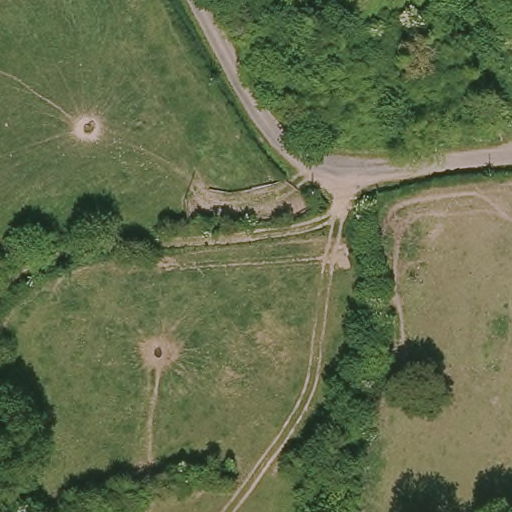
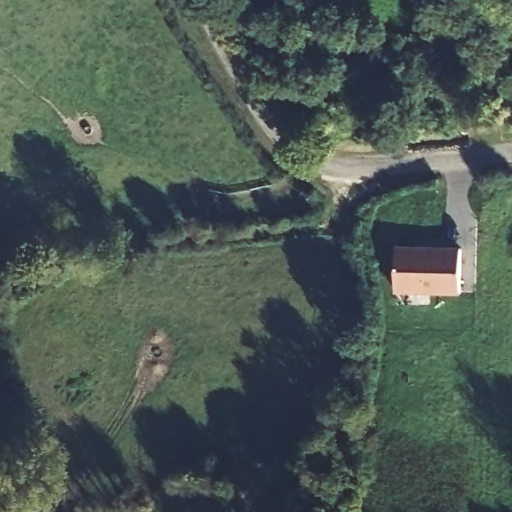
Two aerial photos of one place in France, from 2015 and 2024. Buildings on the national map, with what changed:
demolished [(512,29),(512,49),(510,29),(512,29)]
unchanged [(512,46),(512,78),(508,46),(512,46)]
new [(397,293),(397,245),(462,247),(462,294),(397,293)]

